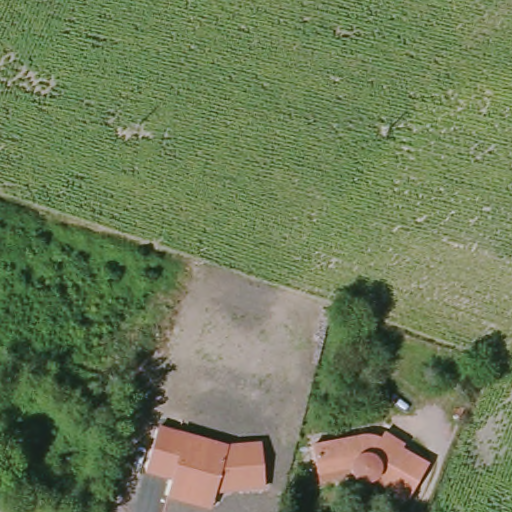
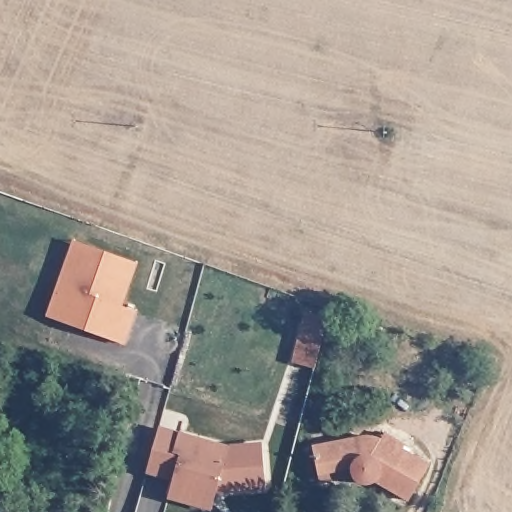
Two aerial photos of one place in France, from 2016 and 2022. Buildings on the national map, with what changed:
new [(47,316),(73,240),(139,263),(123,307),(137,311),(125,345),(47,316)]
new [(302,323),(321,328),(319,337),(311,367),(292,362),(299,332),(302,323)]
unchanged [(265,490),(214,494),(210,510),(168,498),(172,480),(146,473),(158,427),(228,446),(261,442),(265,490)]
unchanged [(316,475),(310,447),(354,437),(362,437),(372,438),(386,444),(389,438),(402,446),(399,451),(425,466),(406,502),(378,486),(357,486),(354,484),(348,480),(317,486),(316,475)]

